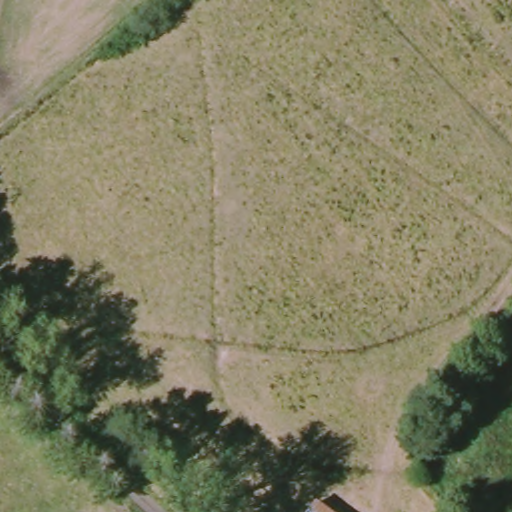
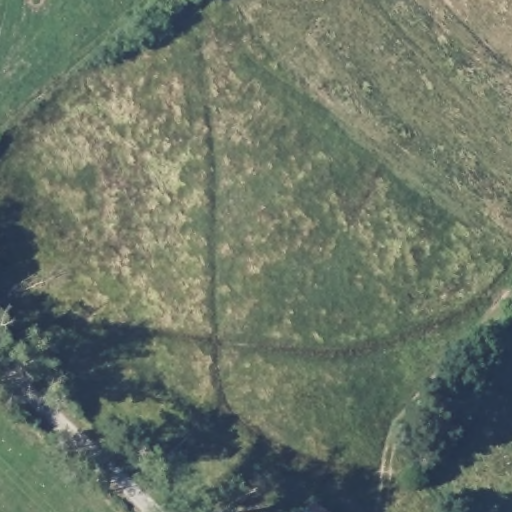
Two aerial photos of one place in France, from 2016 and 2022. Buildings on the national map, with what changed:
unchanged [(323,506),(331,512),(318,512),(323,506)]

